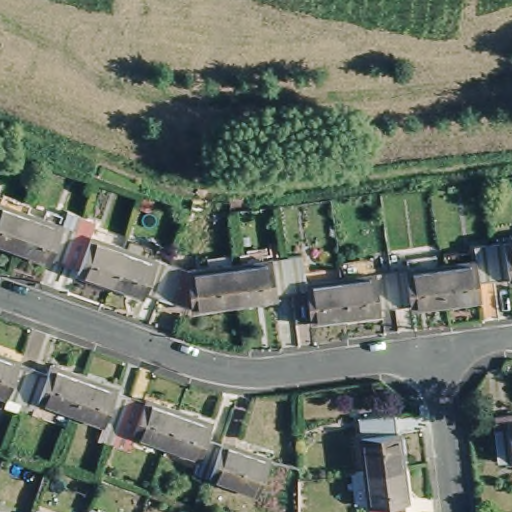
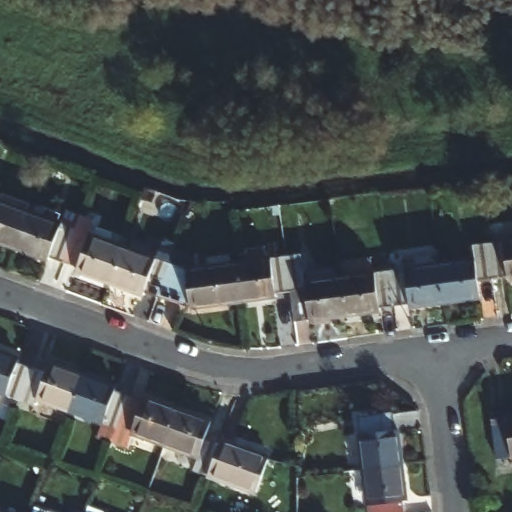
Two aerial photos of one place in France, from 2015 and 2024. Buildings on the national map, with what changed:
unchanged [(18,258),(0,252),(0,214),(30,225),(18,258)]
unchanged [(68,268),(55,264),(52,272),(18,258),(30,225),(66,237),(77,242),(92,246),(123,256),(112,290),(80,280),(82,273),(68,268)]
unchanged [(447,265),(474,260),(472,254),(496,250),(509,248),(512,247),(512,274),(500,276),(477,280),(479,300),(454,303),(447,265)]
unchanged [(205,275),(210,308),(192,311),(162,302),(145,295),(143,301),(112,290),(123,256),(155,266),(172,272),(187,277),(205,275)]
unchanged [(278,292),(279,298),(247,302),(241,267),(274,264),(294,262),(303,261),(307,285),(347,279),(352,317),(315,324),(304,325),(299,290),(278,292)]
unchanged [(399,273),(409,272),(447,265),(454,303),(415,311),(413,300),(403,302),(380,306),(381,314),(352,317),(347,279),(375,276),(399,273)]
unchanged [(205,275),(204,271),(241,267),(247,302),(210,308),(205,275)]
unchanged [(86,380),(74,414),(42,403),(40,409),(24,405),(11,400),(0,397),(0,360),(23,368),(22,373),(34,377),(50,383),(55,370),(86,380)]
unchanged [(136,437),(121,432),(104,426),(74,414),(86,380),(118,393),(132,400),(149,405),(181,415),(169,447),(136,437)]
unchanged [(229,483),(213,478),(200,473),(204,458),(169,447),(181,415),(217,426),(214,440),(226,444),(240,448),(271,459),(261,493),(229,483)]
unchanged [(401,470),(369,475),(363,440),(361,424),(391,420),(392,436),(396,436),(401,470)]
unchanged [(502,430),(512,429),(512,460),(507,460),(502,430)]
unchanged [(369,477),(369,475),(401,470),(406,503),(402,504),(403,512),(374,512),(374,508),(369,477)]
unchanged [(103,505),(101,512),(84,512),(88,500),(103,505)]
unchanged [(54,512),(31,512),(34,505),(54,512)]
unchanged [(0,512),(0,507),(15,512),(0,512)]

